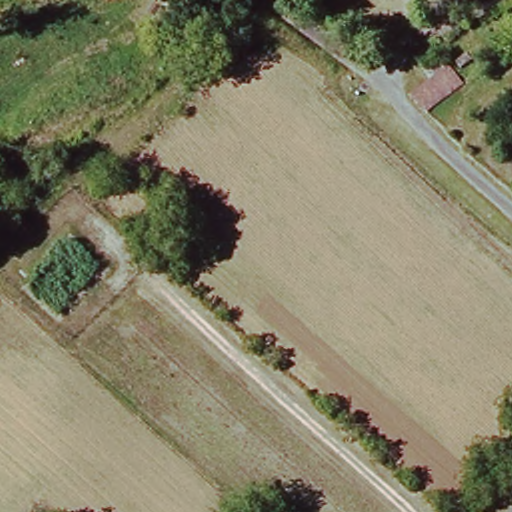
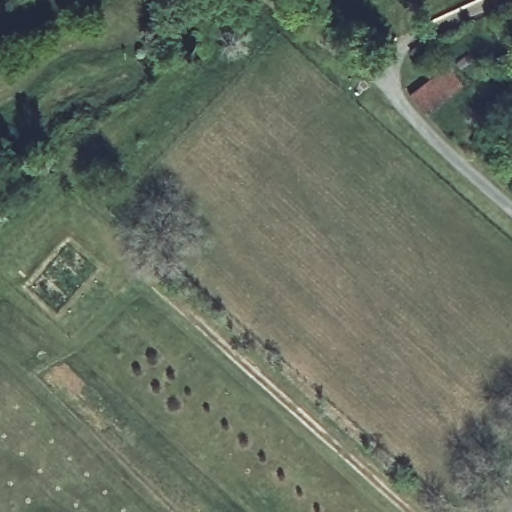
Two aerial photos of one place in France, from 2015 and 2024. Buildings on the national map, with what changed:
unchanged [(432,114),(418,97),(453,72),(456,70),(469,85),(432,114)]

